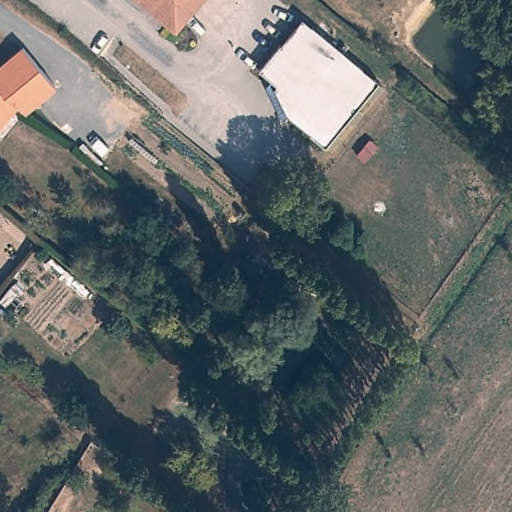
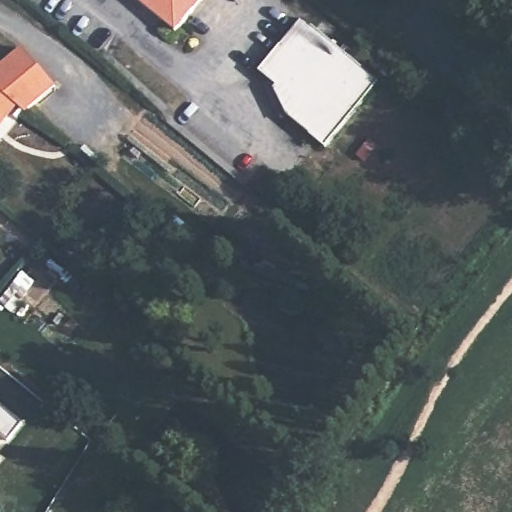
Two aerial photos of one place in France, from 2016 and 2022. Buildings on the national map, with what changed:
unchanged [(170,36),(129,2),(130,0),(200,0),(170,36)]
unchanged [(324,147),(309,135),(310,134),(288,116),(274,89),(277,85),(260,70),(303,19),(379,82),(324,147)]
unchanged [(53,92),(55,96),(39,110),(25,121),(17,115),(4,131),(0,135),(0,77),(24,57),(53,92)]
unchanged [(0,302),(0,299),(14,282),(23,290),(18,296),(16,295),(6,307),(0,302)]
new [(8,440),(0,434),(0,435),(0,406),(21,423),(8,440)]

